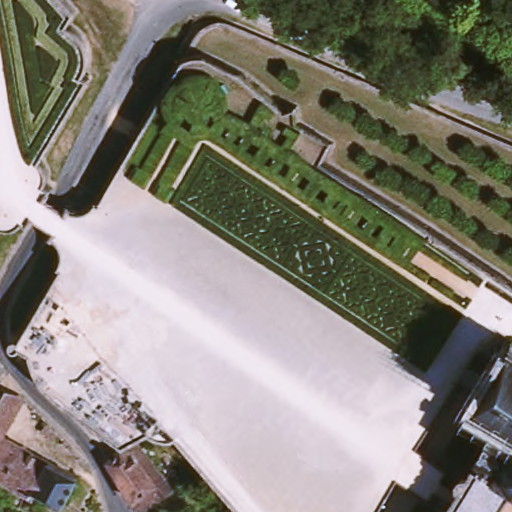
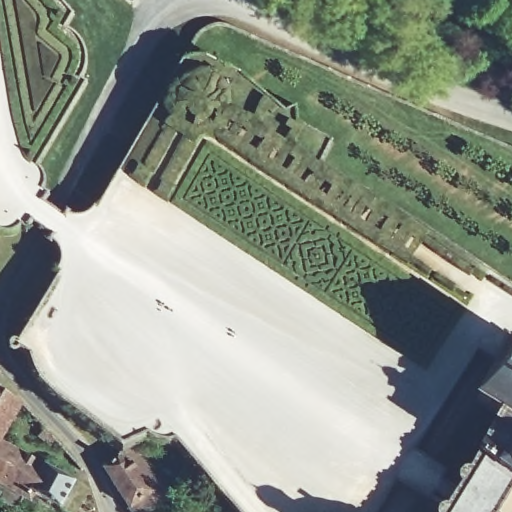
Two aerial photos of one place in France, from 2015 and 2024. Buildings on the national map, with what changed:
unchanged [(497,512),(446,512),(499,422),(475,406),(512,344),(512,488),(512,487),(497,512)]
unchanged [(18,397),(23,405),(2,442),(0,446),(0,390),(18,397)]
unchanged [(34,437),(40,430),(52,442),(47,447),(34,437)]
unchanged [(76,483),(63,511),(38,497),(33,505),(26,501),(0,486),(0,446),(2,442),(21,453),(46,468),(76,483)]
unchanged [(101,467),(118,453),(118,452),(135,449),(136,451),(168,498),(147,512),(127,512),(122,506),(101,467)]

